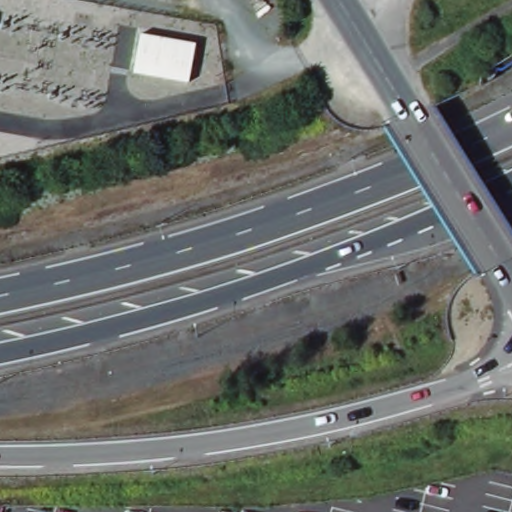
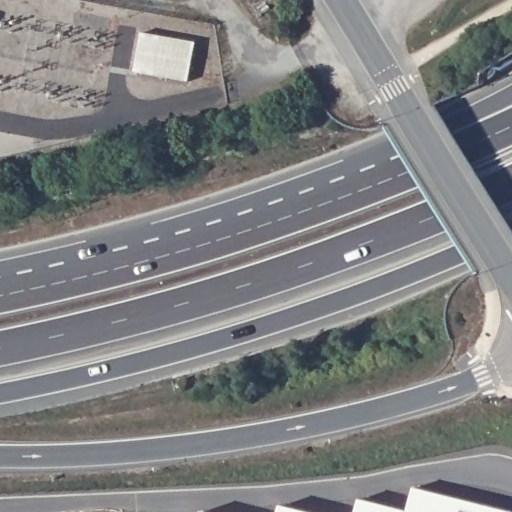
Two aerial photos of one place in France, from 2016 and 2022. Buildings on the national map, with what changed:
unchanged [(189,81),(134,71),(141,33),(196,44),(189,81)]
new [(359,497),(408,511),(414,487),(512,512),(356,512),(359,497)]
new [(281,506),(308,512),(279,512),(281,506)]

